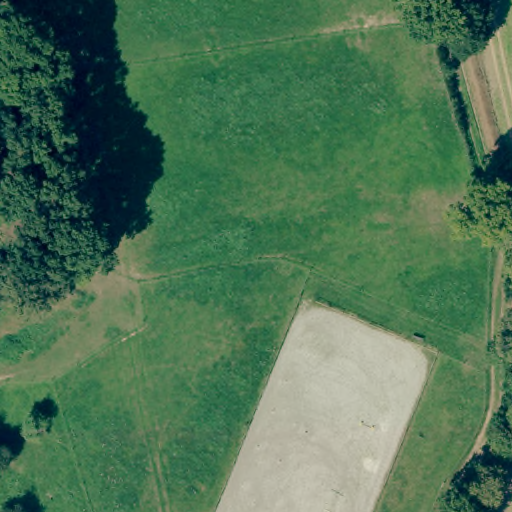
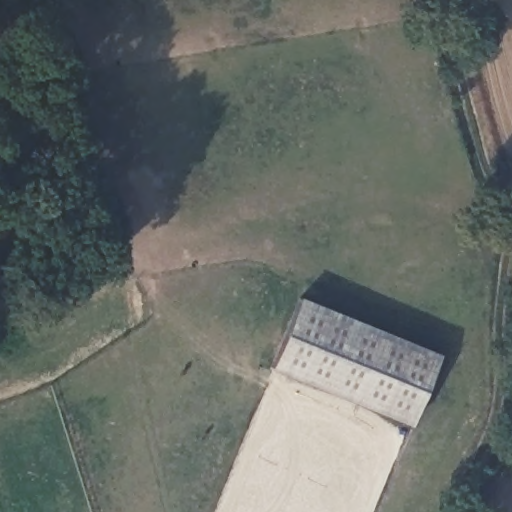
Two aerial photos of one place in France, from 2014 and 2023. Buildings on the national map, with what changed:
new [(440,354),(411,426),(270,369),(299,296),(440,354)]

